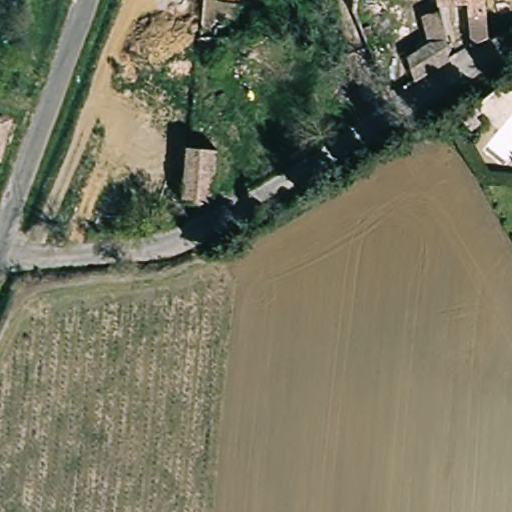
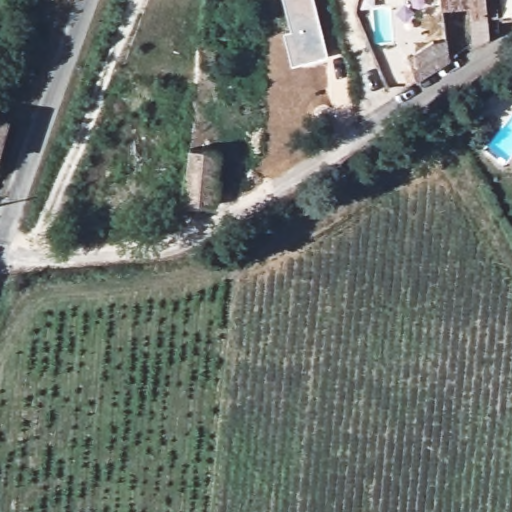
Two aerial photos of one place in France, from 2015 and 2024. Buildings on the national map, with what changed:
new [(292,67),(283,34),(291,31),(283,0),(314,0),(329,56),(292,67)]
unchanged [(443,0),(490,0),(497,49),(477,60),(470,5),(444,8),(443,0)]
unchanged [(510,28),(505,0),(512,0),(512,28),(510,28)]
unchanged [(452,75),(424,91),(420,71),(434,65),(429,15),(445,14),(452,75)]
unchanged [(0,131),(0,119),(3,120),(0,131)]
unchanged [(219,157),(212,212),(188,209),(193,153),(219,157)]

